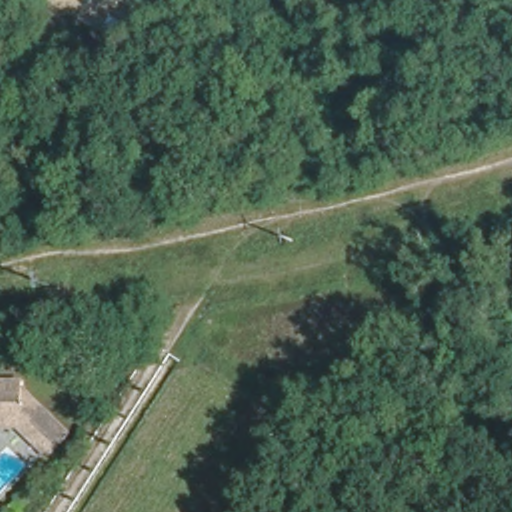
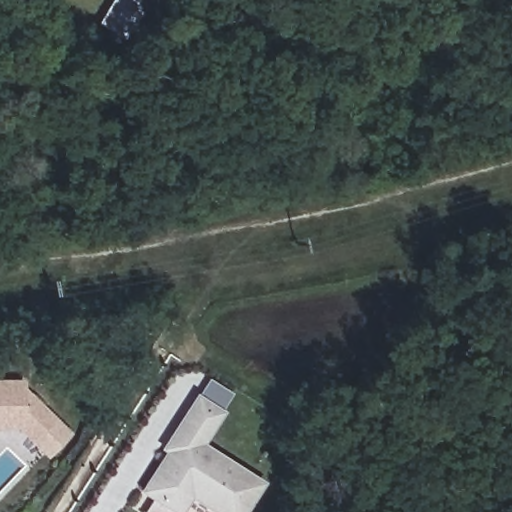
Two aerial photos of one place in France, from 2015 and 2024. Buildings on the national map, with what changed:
unchanged [(16,389),(15,411),(14,423),(14,424),(0,423),(0,385),(16,389)]
new [(179,489),(168,508),(139,490),(164,450),(170,454),(164,450),(159,447),(165,437),(191,396),(216,410),(197,444),(260,481),(241,512),(218,512),(217,512),(179,489)]
unchanged [(49,448),(14,424),(14,423),(15,411),(21,402),(61,432),(49,448)]
new [(168,508),(165,512),(140,512),(149,497),(168,508)]

